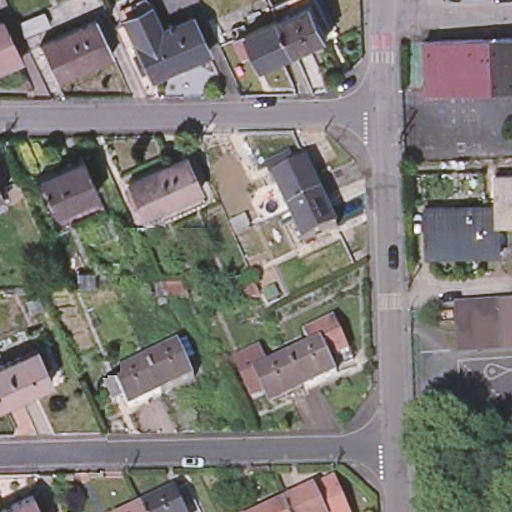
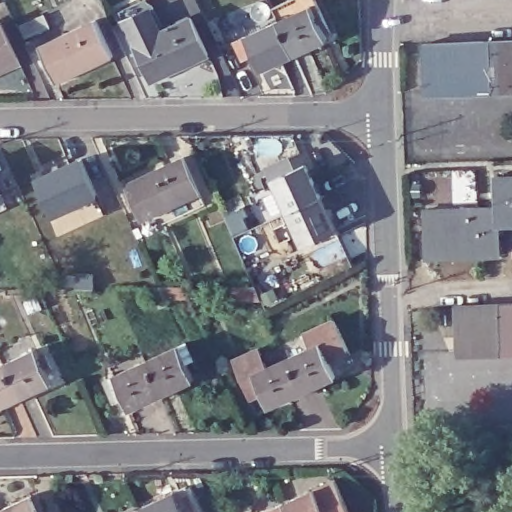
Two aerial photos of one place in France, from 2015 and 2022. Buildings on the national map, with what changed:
unchanged [(202,47),(150,74),(132,39),(120,15),(149,0),(161,24),(184,11),(202,47)]
unchanged [(275,1),(277,0),(313,0),(327,31),(296,45),(280,13),(275,1)]
unchanged [(47,12),(55,27),(32,38),(25,23),(47,12)]
unchanged [(237,33),(246,29),(280,13),(296,45),(262,62),(253,45),(245,49),(237,33)]
unchanged [(58,81),(41,46),(95,19),(112,54),(58,81)]
unchanged [(0,63),(0,28),(15,56),(0,63)]
unchanged [(427,89),(425,44),(512,40),(512,85),(427,89)]
unchanged [(122,177),(180,149),(197,185),(139,213),(122,177)]
unchanged [(270,164),(292,153),(298,165),(308,160),(322,191),(290,206),(276,175),(270,164)]
unchanged [(32,177),(75,155),(92,189),(48,210),(32,177)]
unchanged [(420,204),(500,203),(499,173),(512,172),(512,218),(500,219),(500,249),(422,250),(420,204)]
unchanged [(322,191),(337,222),(305,237),(290,206),(322,191)]
unchanged [(12,279),(37,278),(40,291),(14,291),(12,279)]
unchanged [(80,278),(97,278),(98,290),(80,290),(80,278)]
unchanged [(188,289),(193,301),(174,301),(168,289),(188,289)]
unchanged [(512,297),(512,342),(457,344),(455,299),(512,297)]
unchanged [(287,346),(307,337),(301,324),(332,310),(351,351),(332,361),(334,366),(303,381),(287,346)]
unchanged [(145,353),(179,338),(192,371),(160,386),(145,353)]
unchanged [(303,381),(270,396),(262,380),(249,386),(232,349),(258,338),(266,356),(287,346),(303,381)]
unchanged [(2,359),(35,344),(50,377),(17,392),(2,359)]
unchanged [(102,371),(113,367),(145,353),(160,386),(129,401),(123,389),(113,394),(102,371)]
unchanged [(0,399),(0,360),(2,359),(17,392),(0,399)]
unchanged [(279,497),(330,474),(346,512),(286,512),(279,497)]
unchanged [(43,512),(0,512),(0,498),(30,484),(43,512)]
unchanged [(158,492),(171,485),(183,512),(168,512),(158,492)]
unchanged [(127,506),(158,492),(168,512),(130,512),(127,506)]
unchanged [(279,497),(286,512),(246,512),(279,497)]
unchanged [(127,506),(130,512),(113,512),(127,506)]

